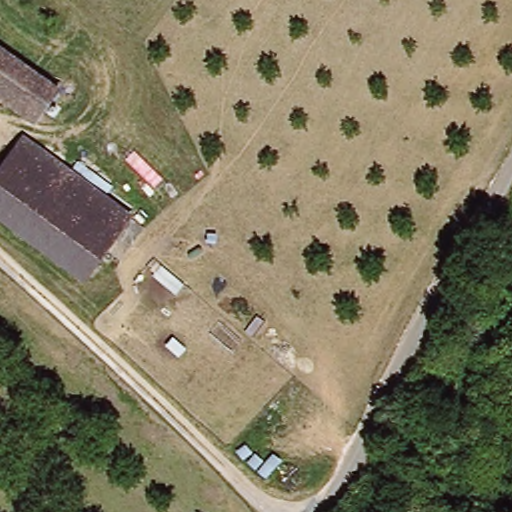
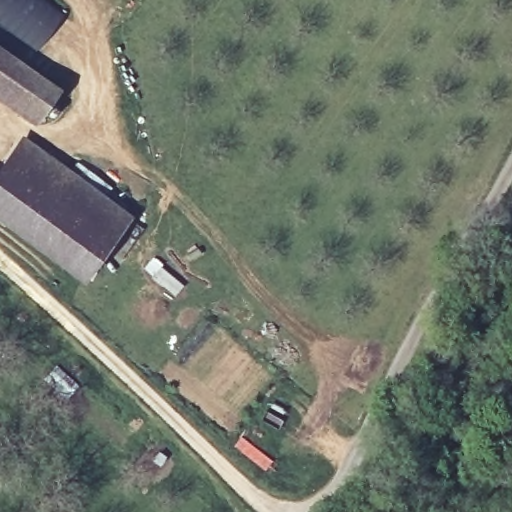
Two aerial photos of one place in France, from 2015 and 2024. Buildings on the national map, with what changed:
new [(36,52),(0,23),(0,0),(43,0),(63,16),(36,52)]
unchanged [(0,105),(0,56),(56,99),(33,131),(0,105)]
unchanged [(0,169),(21,143),(43,158),(0,213),(0,169)]
unchanged [(107,262),(97,255),(80,278),(66,268),(0,218),(0,213),(43,158),(132,230),(107,262)]

